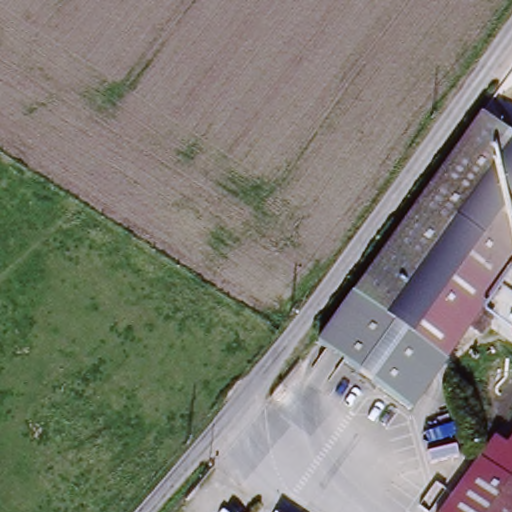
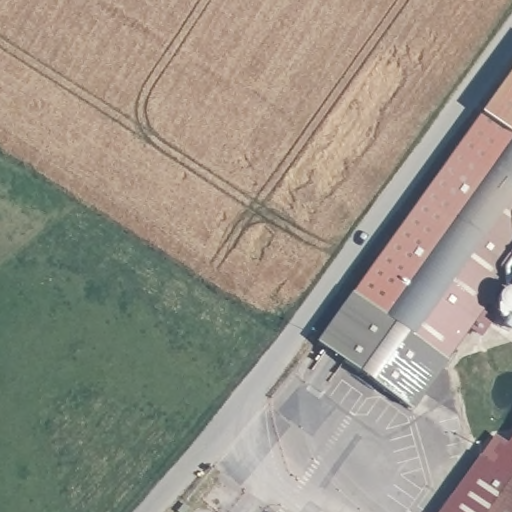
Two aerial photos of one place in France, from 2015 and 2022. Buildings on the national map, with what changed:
unchanged [(481,314),(494,323),(483,339),(469,330),(409,415),(312,347),(386,245),(479,111),(512,64),(512,276),(481,314)]
unchanged [(442,512),(479,457),(511,479),(512,478),(512,512),(442,512)]

